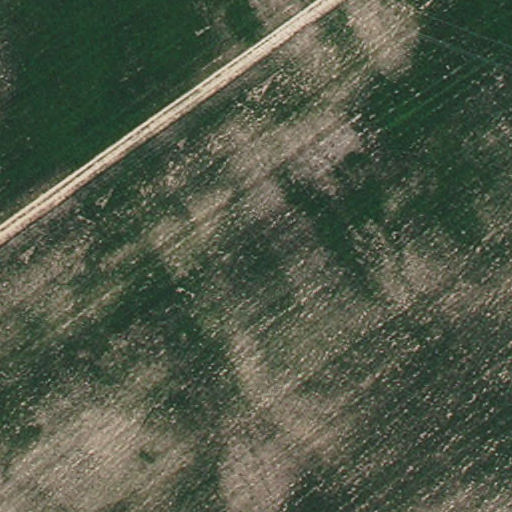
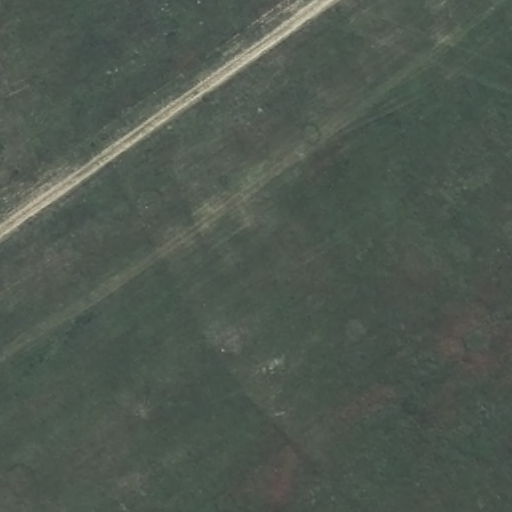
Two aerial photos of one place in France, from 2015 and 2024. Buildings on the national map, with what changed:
[]

